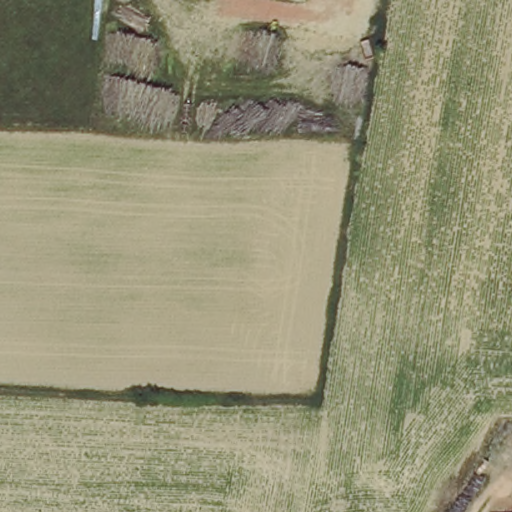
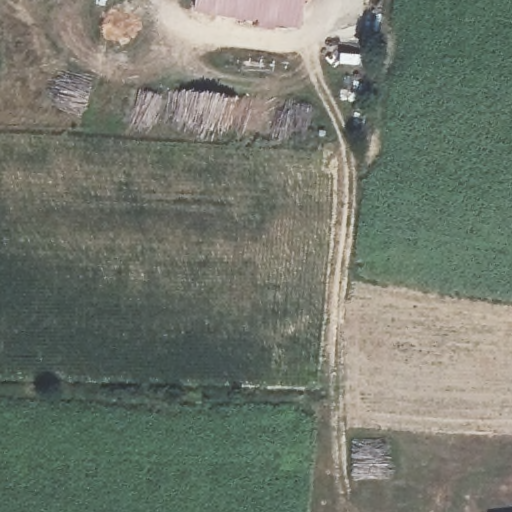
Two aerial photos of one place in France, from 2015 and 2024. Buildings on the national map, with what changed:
new [(298,29),(193,11),(196,0),(303,0),(298,29)]

